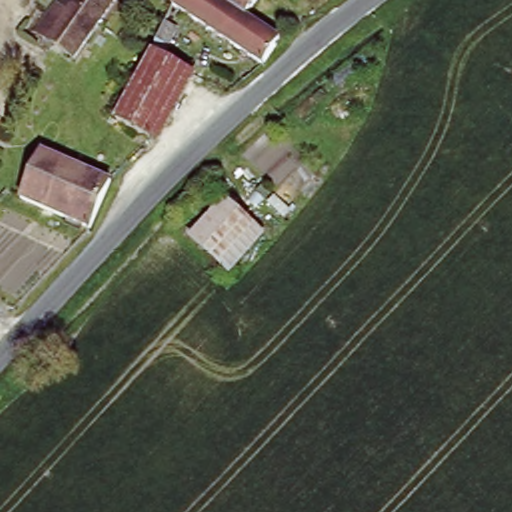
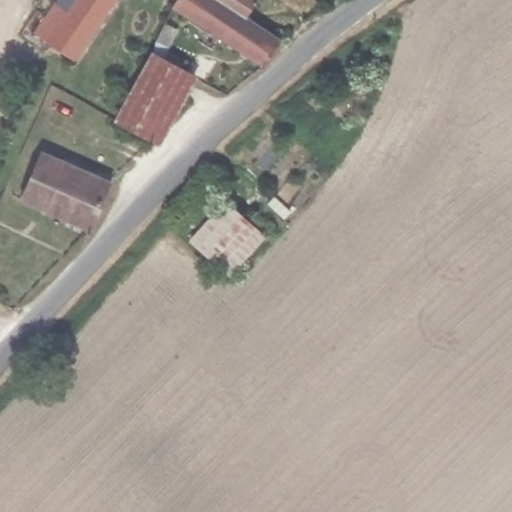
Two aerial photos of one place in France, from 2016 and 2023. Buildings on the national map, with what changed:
unchanged [(73,65),(35,39),(62,0),(118,0),(73,65)]
unchanged [(260,71),(172,8),(177,0),(253,0),(257,4),(245,22),(278,46),(260,71)]
unchanged [(111,125),(146,57),(192,81),(157,149),(111,125)]
unchanged [(88,234),(17,202),(38,156),(109,188),(88,234)]
unchanged [(265,237),(230,277),(189,240),(224,200),(265,237)]

